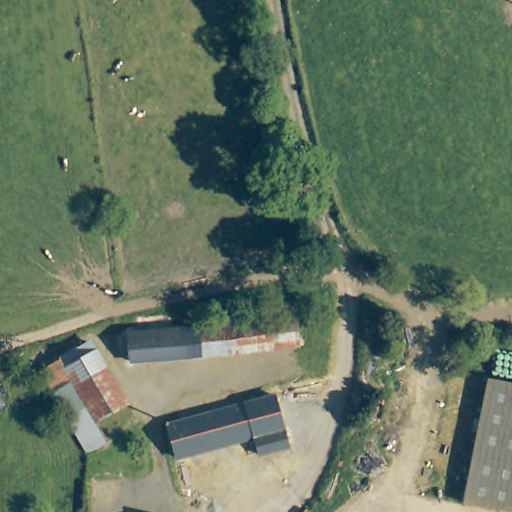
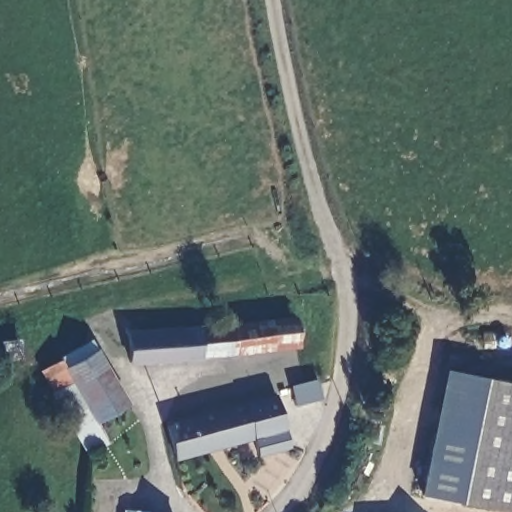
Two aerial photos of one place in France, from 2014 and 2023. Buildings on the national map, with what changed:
unchanged [(216,328),(306,319),(308,342),(217,353),(216,328)]
unchanged [(216,324),(216,328),(217,353),(143,361),(142,328),(216,324)]
unchanged [(102,345),(132,400),(99,420),(66,365),(102,345)]
unchanged [(108,437),(90,448),(47,368),(62,359),(66,365),(99,420),(108,437)]
new [(468,500),(422,491),(444,370),(492,379),(468,500)]
unchanged [(468,500),(492,379),(512,382),(512,508),(468,500)]
unchanged [(277,430),(267,399),(277,396),(292,448),(258,457),(255,436),(277,430)]
unchanged [(267,399),(277,430),(201,451),(179,458),(171,425),(267,399)]

